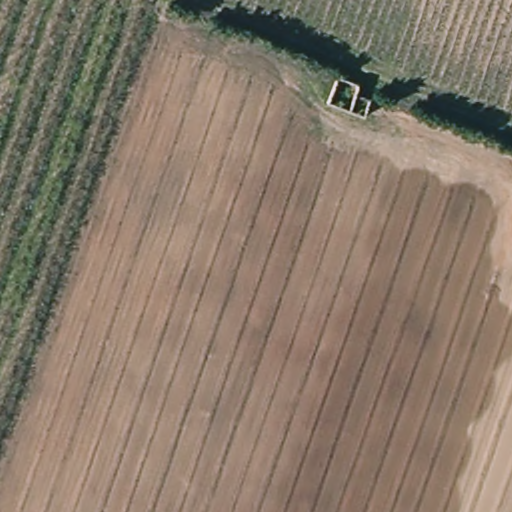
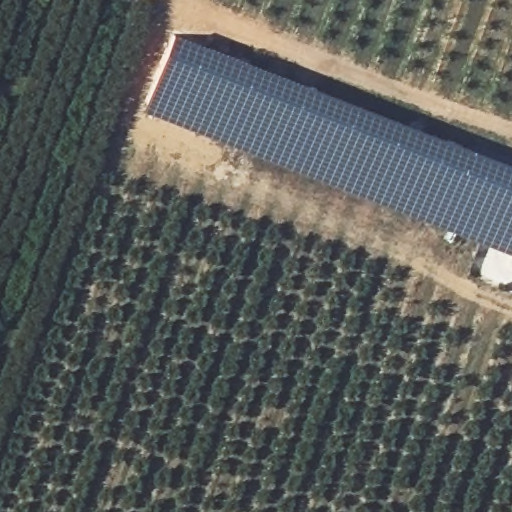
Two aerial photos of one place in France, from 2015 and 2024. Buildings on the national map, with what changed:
new [(144,112),(175,32),(512,164),(512,254),(144,112)]

